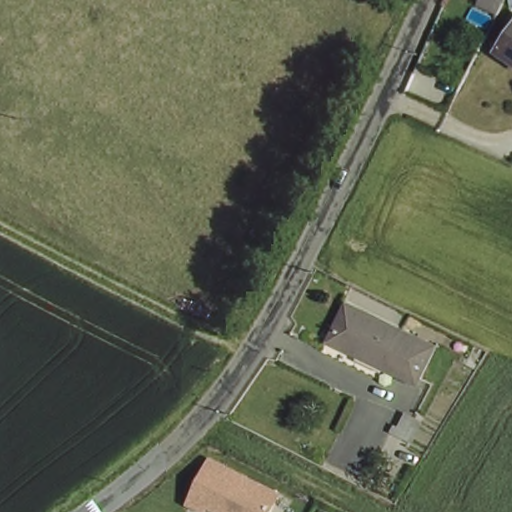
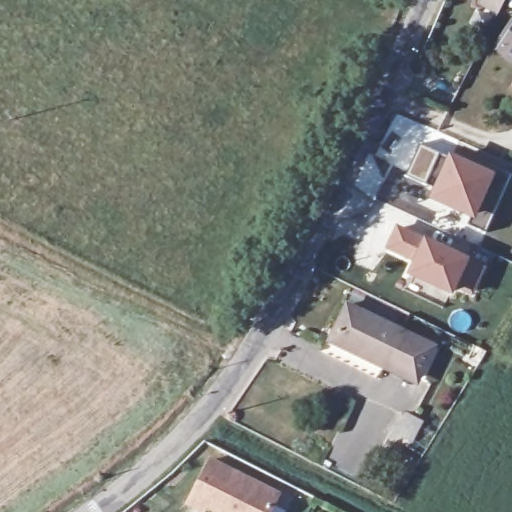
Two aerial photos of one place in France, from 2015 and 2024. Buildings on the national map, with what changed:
unchanged [(499,0),(512,0),(512,10),(508,16),(494,10),(499,0)]
unchanged [(512,38),(512,68),(498,59),(512,38)]
new [(488,176),(493,166),(511,175),(484,235),(466,227),(469,221),(424,199),(431,187),(403,174),(419,143),(488,176)]
new [(484,266),(470,294),(452,286),(447,297),(403,277),(411,262),(383,248),(394,223),(484,266)]
unchanged [(434,353),(418,385),(389,370),(386,375),(329,346),(348,311),(434,353)]
unchanged [(402,421),(412,424),(406,442),(397,439),(402,421)]
unchanged [(274,512),(210,512),(208,511),(207,512),(199,512),(186,505),(211,456),(284,494),(274,512)]

